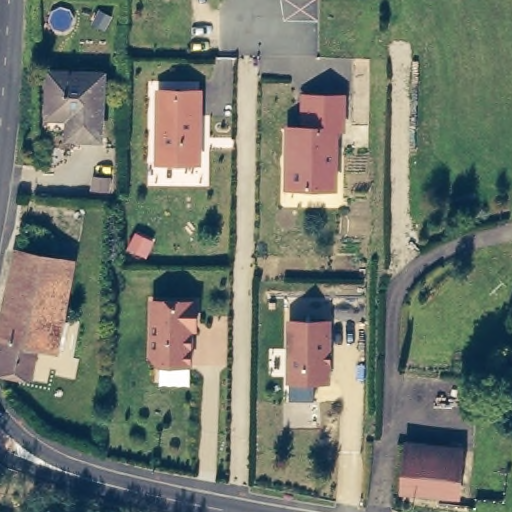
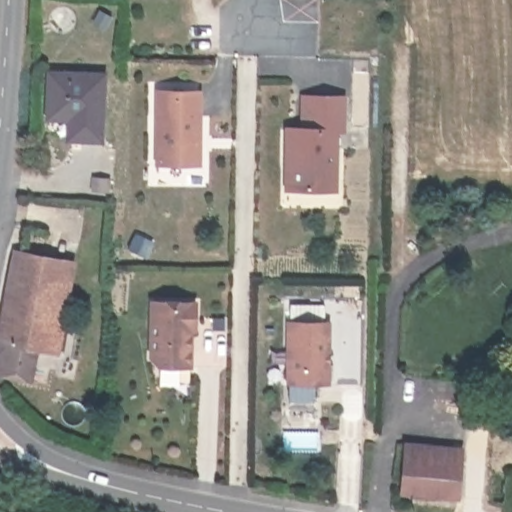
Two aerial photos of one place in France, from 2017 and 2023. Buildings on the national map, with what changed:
unchanged [(65,116),(45,115),(47,71),(101,73),(97,138),(80,137),(65,137),(65,116)]
unchanged [(201,89),(200,162),(154,162),(153,89),(201,89)]
unchanged [(343,94),(345,133),(337,133),(336,189),(285,189),(285,123),(300,124),(298,93),(343,94)]
unchanged [(102,192),(102,199),(87,199),(87,192),(102,192)]
unchanged [(62,257),(50,347),(30,344),(23,376),(0,372),(0,307),(10,250),(62,257)]
unchanged [(197,299),(195,364),(162,364),(150,356),(152,298),(197,299)]
unchanged [(332,322),(331,384),(287,383),(288,320),(332,322)]
unchanged [(458,457),(455,487),(408,483),(412,453),(458,457)]

